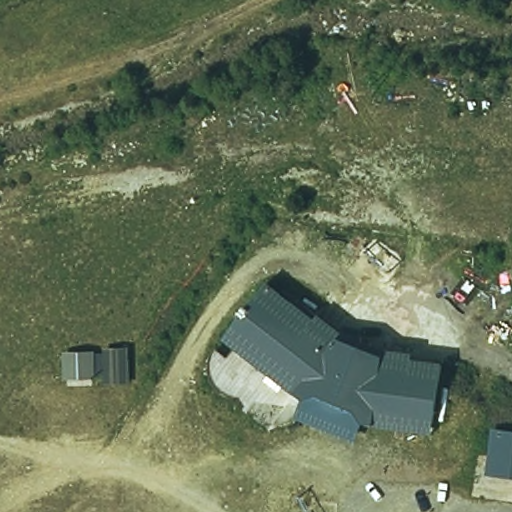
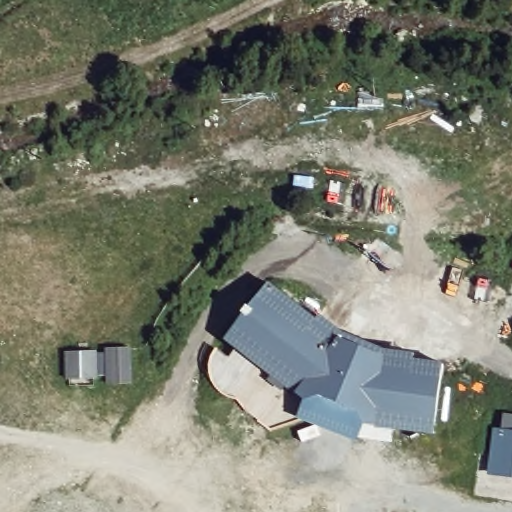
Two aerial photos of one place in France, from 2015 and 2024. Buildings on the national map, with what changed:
unchanged [(441,432),(387,425),(368,425),(365,439),(300,419),(309,402),(299,389),(281,426),(253,413),(246,404),(243,399),(229,396),(221,392),(216,385),(213,377),(212,371),(212,365),(213,358),(215,352),(217,349),(219,346),(233,353),(236,346),(223,339),(271,278),(316,316),(323,310),(355,335),(386,344),(451,353),(441,432)]
unchanged [(126,385),(106,386),(105,351),(124,350),(126,385)]
unchanged [(94,382),(61,384),(61,355),(93,354),(94,382)]
unchanged [(494,426),(512,428),(512,476),(490,475),(494,426)]

